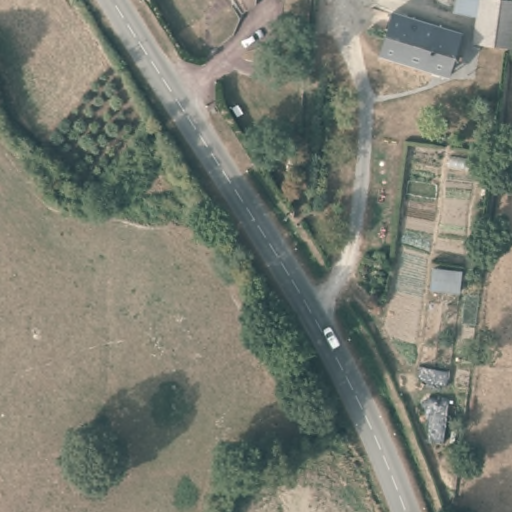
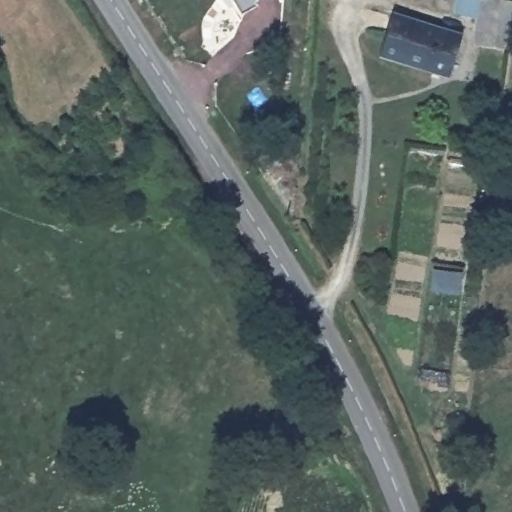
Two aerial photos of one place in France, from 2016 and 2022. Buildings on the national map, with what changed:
unchanged [(475,42),(480,14),(456,10),(458,0),(512,0),(512,49),(475,42)]
unchanged [(460,29),(453,67),(425,62),(424,68),(381,60),(388,15),(460,29)]
unchanged [(457,288),(428,282),(429,265),(458,270),(457,288)]

